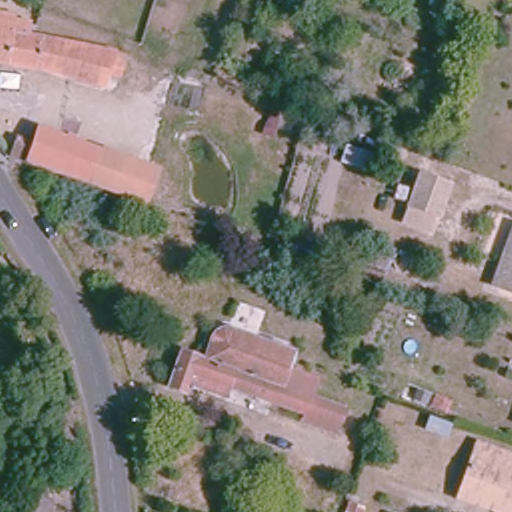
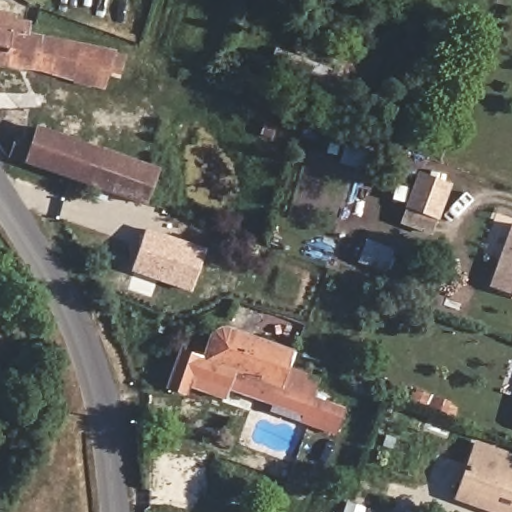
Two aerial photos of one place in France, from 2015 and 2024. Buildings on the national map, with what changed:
unchanged [(0,71),(0,9),(18,12),(17,20),(35,22),(33,33),(118,48),(110,89),(0,71)]
unchanged [(330,84),(270,66),(278,47),(335,68),(330,84)]
unchanged [(33,130),(95,152),(84,181),(22,159),(33,130)]
unchanged [(95,152),(96,149),(157,170),(146,202),(112,190),(84,181),(95,152)]
unchanged [(446,185),(435,217),(407,209),(416,177),(446,185)]
new [(131,271),(146,228),(206,249),(191,292),(131,271)]
unchanged [(495,290),(512,232),(512,295),(495,290)]
unchanged [(386,247),(410,255),(404,273),(380,266),(386,247)]
unchanged [(192,388),(190,393),(171,387),(183,351),(206,359),(216,333),(220,331),(226,329),(231,328),(244,331),(299,351),(297,355),(293,369),(323,379),(316,397),(349,410),(340,439),(302,426),(305,415),(229,388),(226,399),(192,388)]
unchanged [(448,413),(401,400),(404,387),(450,402),(448,413)]
unchanged [(458,493),(477,438),(512,452),(512,465),(511,468),(512,469),(512,512),(502,512),(456,496),(458,493)]
demolished [(58,505),(54,512),(23,512),(34,492),(58,505)]
unchanged [(365,512),(345,512),(348,502),(366,508),(365,512)]

